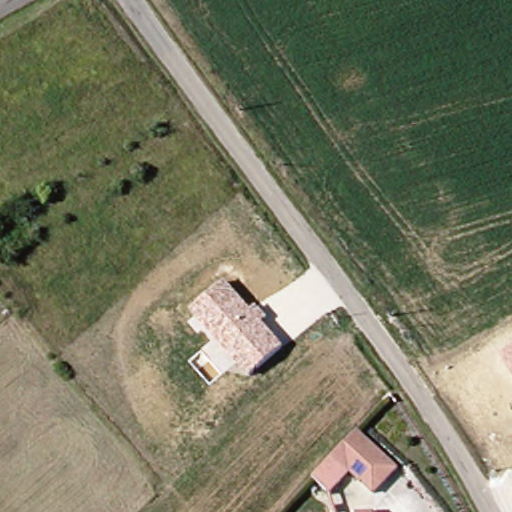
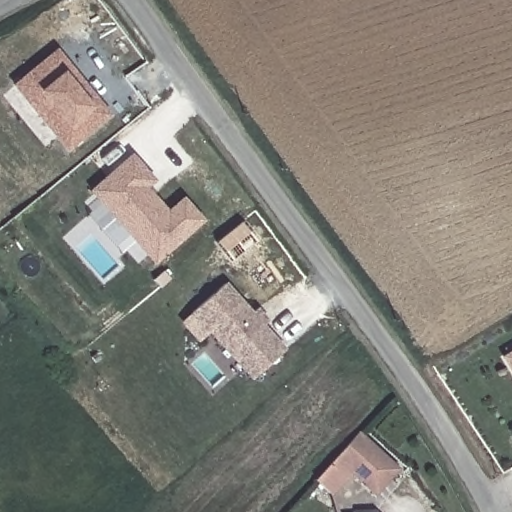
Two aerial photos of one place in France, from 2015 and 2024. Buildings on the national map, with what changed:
new [(72,67),(97,99),(109,114),(67,148),(57,136),(15,84),(58,50),(72,67)]
new [(15,84),(57,136),(46,145),(4,94),(15,84)]
new [(157,180),(153,184),(160,192),(156,196),(171,213),(187,199),(205,220),(157,262),(96,190),(135,155),(157,180)]
unchanged [(252,310),(257,306),(268,318),(263,324),(283,348),(251,379),(191,312),(225,283),(252,310)]
unchanged [(501,354),(512,349),(512,373),(501,354)]
unchanged [(312,479),(335,459),(359,434),(398,472),(374,498),(350,475),(332,495),(312,479)]

